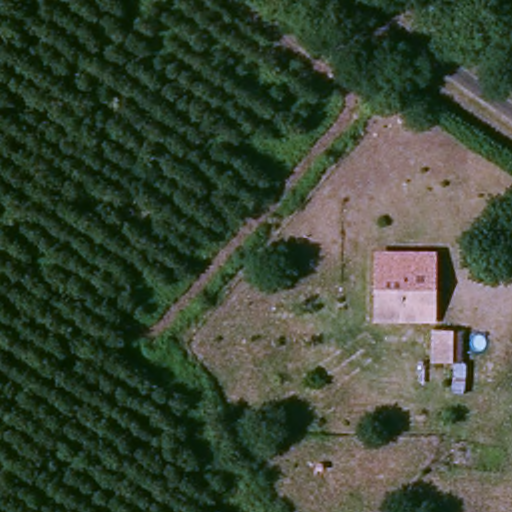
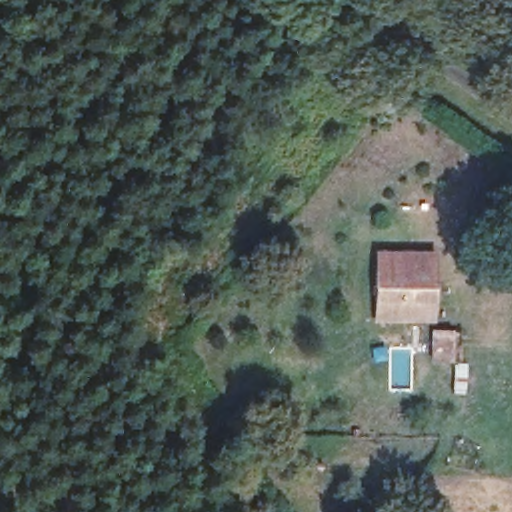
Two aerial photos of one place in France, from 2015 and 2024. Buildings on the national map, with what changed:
unchanged [(440,250),(437,316),(380,312),(382,248),(440,250)]
unchanged [(457,345),(456,390),(415,390),(417,346),(457,345)]

